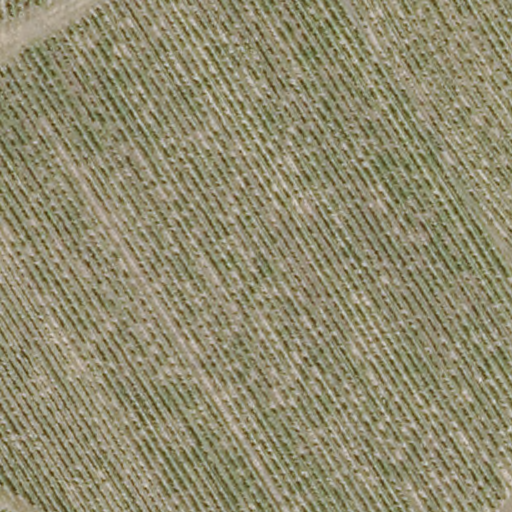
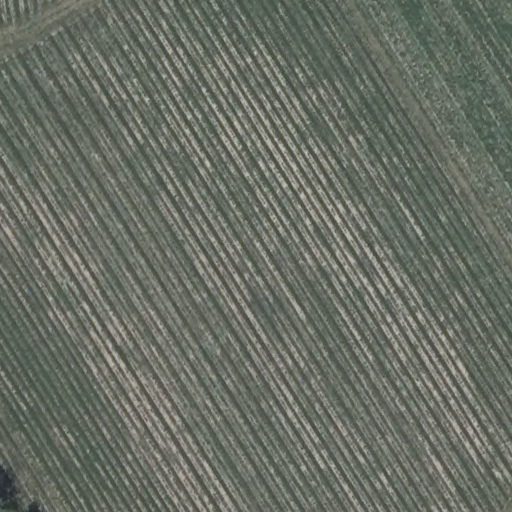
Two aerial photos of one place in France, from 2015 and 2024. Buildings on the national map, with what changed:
[]

